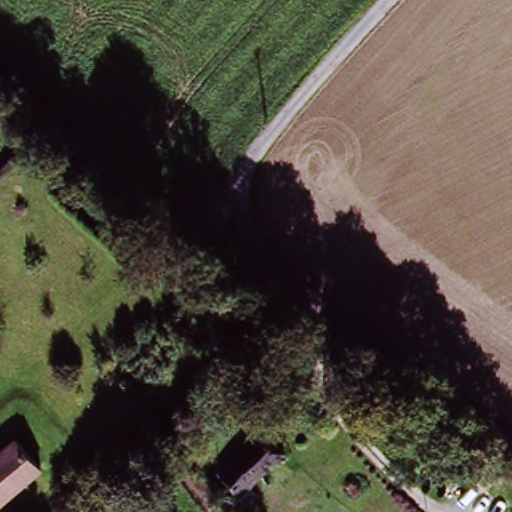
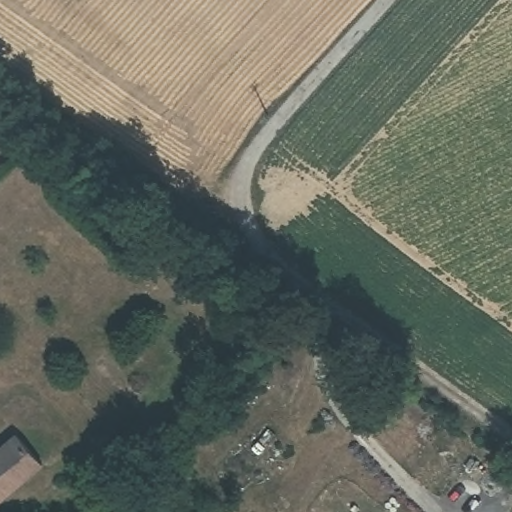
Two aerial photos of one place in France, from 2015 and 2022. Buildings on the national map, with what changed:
unchanged [(218,463),(265,426),(284,448),(236,485),(218,463)]
unchanged [(0,452),(17,437),(49,470),(0,510),(0,452)]

